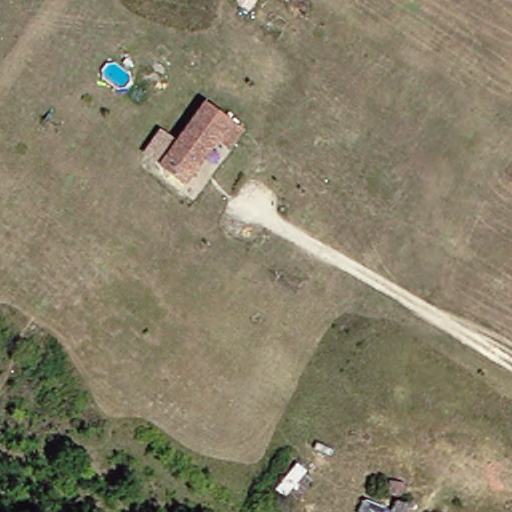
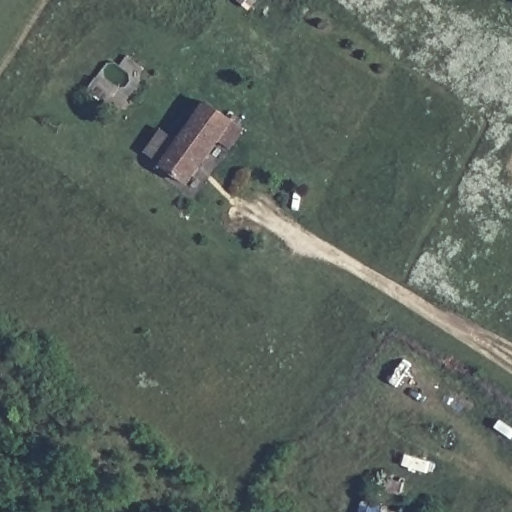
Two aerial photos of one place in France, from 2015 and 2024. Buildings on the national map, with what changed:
unchanged [(159,167),(204,104),(238,130),(224,149),(214,141),(182,185),(159,167)]

